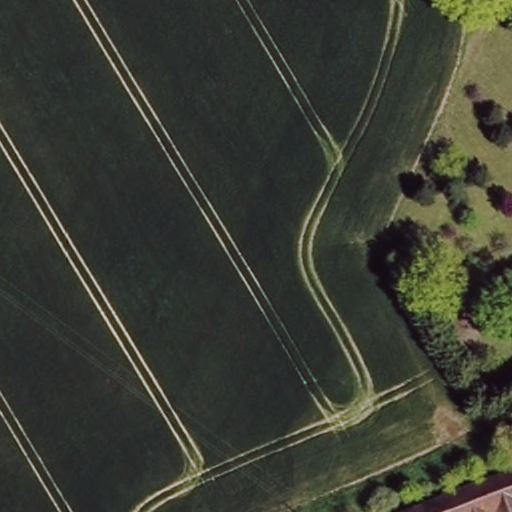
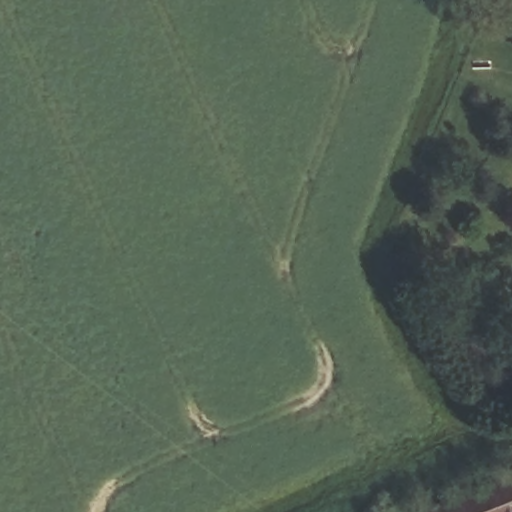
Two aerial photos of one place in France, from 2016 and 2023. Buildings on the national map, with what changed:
unchanged [(512,470),(512,512),(411,512),(512,470)]

